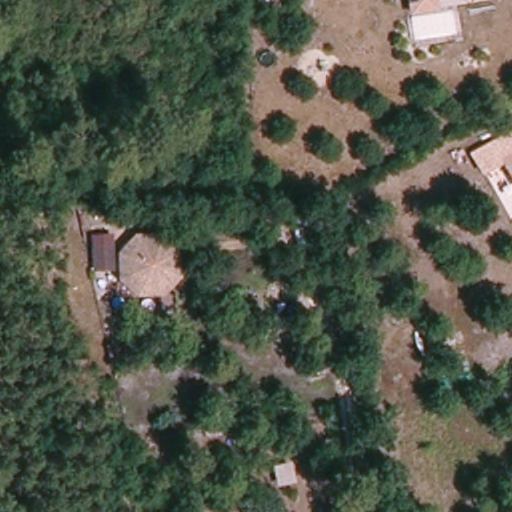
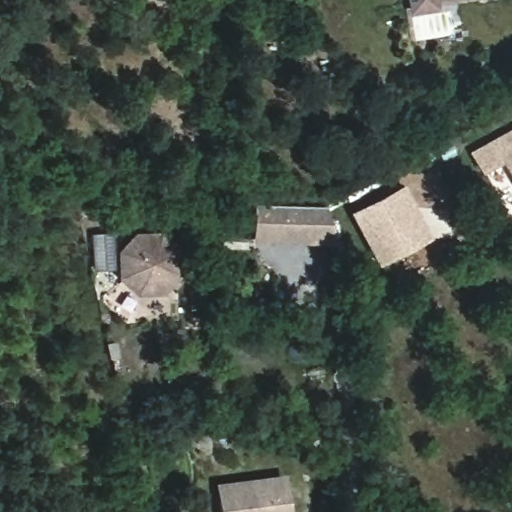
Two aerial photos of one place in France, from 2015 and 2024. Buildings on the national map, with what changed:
unchanged [(409,11),(407,0),(430,0),(431,9),(409,11)]
unchanged [(501,166),(512,161),(512,193),(501,166)]
new [(403,184),(431,240),(377,267),(349,214),(403,184)]
new [(251,243),(252,205),(327,207),(336,246),(251,243)]
unchanged [(135,236),(160,236),(178,250),(180,278),(162,296),(131,299),(115,280),(113,270),(94,269),(93,238),(114,236),(116,250),(135,236)]
new [(285,476),(290,512),(218,512),(214,486),(285,476)]

